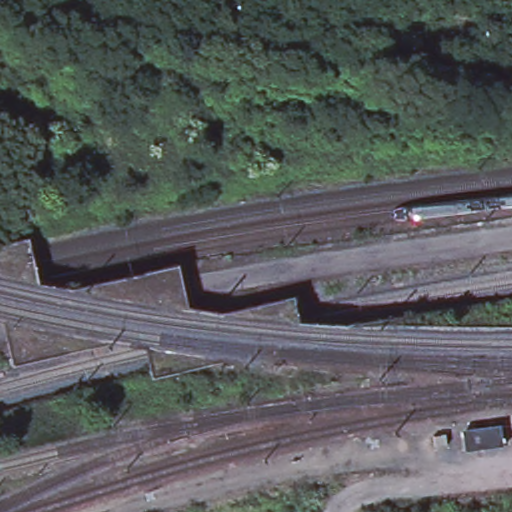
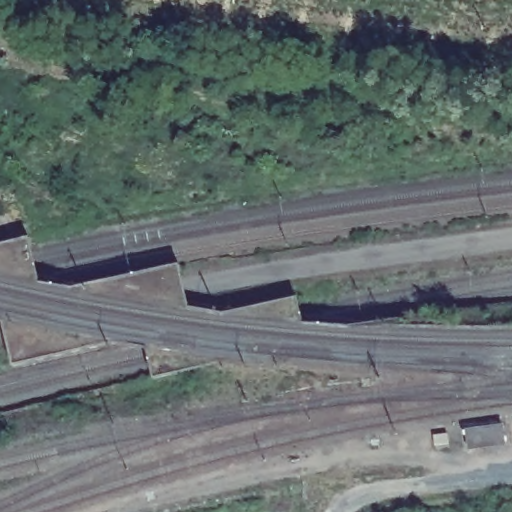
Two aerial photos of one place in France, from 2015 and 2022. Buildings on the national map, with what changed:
unchanged [(502,423),(503,423),(507,445),(468,450),(464,428),(502,423)]

